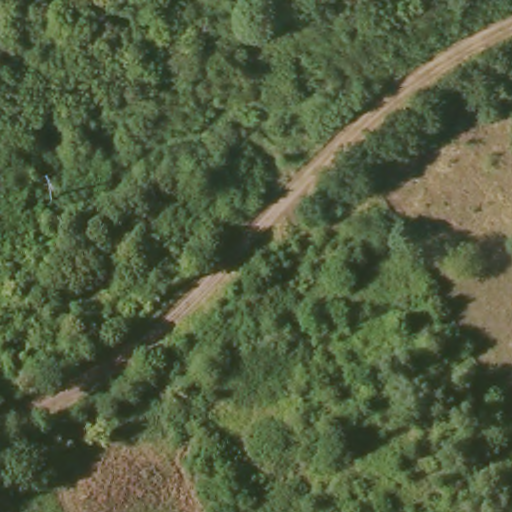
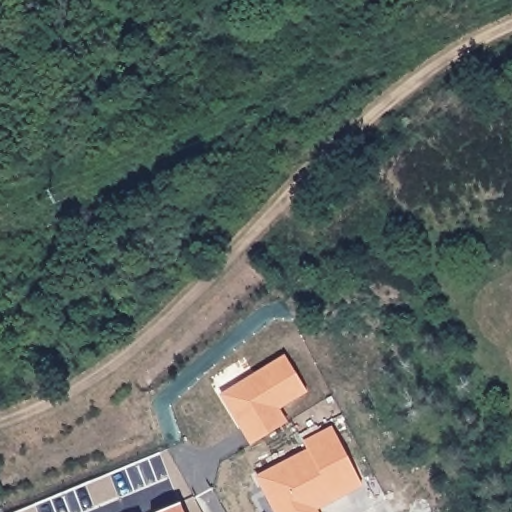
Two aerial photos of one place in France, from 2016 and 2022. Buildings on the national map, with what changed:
new [(288,357),(309,392),(305,394),(314,408),(253,444),(244,428),(248,426),(228,394),(288,357)]
new [(316,449),(312,442),(340,426),(371,483),(342,498),(338,489),(320,499),(327,512),(285,512),(266,477),(316,449)]
new [(151,512),(179,499),(185,512),(152,512),(151,512)]

